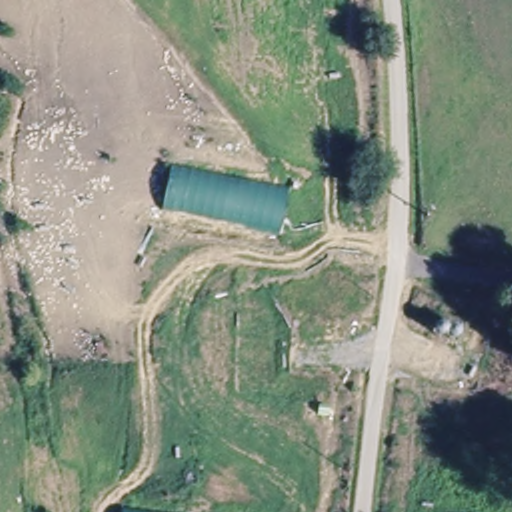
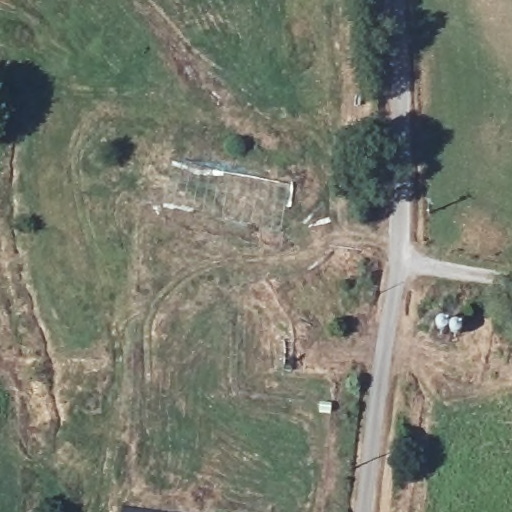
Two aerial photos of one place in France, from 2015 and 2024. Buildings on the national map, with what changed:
demolished [(164,205),(173,162),(292,187),(281,231),(164,205)]
unchanged [(441,333),(440,332),(438,331),(438,328),(438,327),(439,325),(440,323),(443,322),(445,322),(462,326),(463,327),(464,330),(464,332),(463,335),(461,336),(459,337),(456,337),(443,334),(441,333)]
unchanged [(165,512),(124,512),(124,507),(165,512)]

